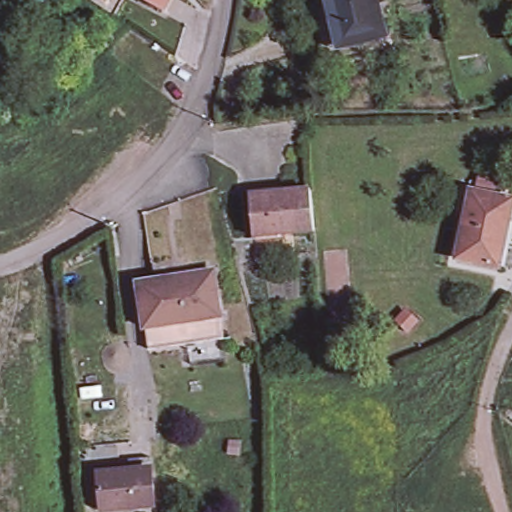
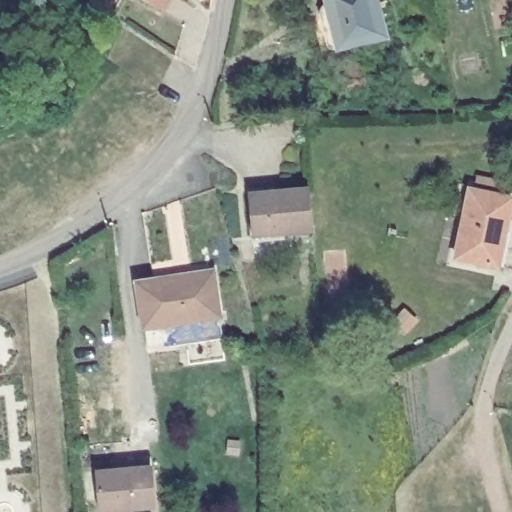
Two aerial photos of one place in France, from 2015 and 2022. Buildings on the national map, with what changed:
unchanged [(165,12),(140,0),(171,0),(165,12)]
unchanged [(392,35),(348,47),(342,48),(339,47),(337,45),(331,26),(340,23),(334,0),(383,0),(392,35)]
unchanged [(315,232),(254,237),(250,194),(310,189),(315,232)]
unchanged [(472,189),(512,197),(512,207),(500,264),(459,256),(472,189)]
unchanged [(145,327),(138,283),(155,280),(152,263),(175,259),(177,277),(214,272),(220,316),(145,327)]
unchanged [(224,338),(148,350),(145,327),(220,316),(224,338)]
unchanged [(100,512),(100,503),(88,504),(85,480),(97,479),(97,477),(130,474),(129,464),(150,462),(152,476),(155,511),(150,512),(100,512)]

